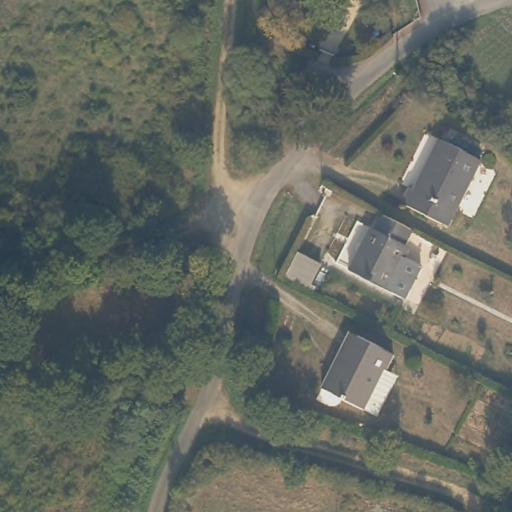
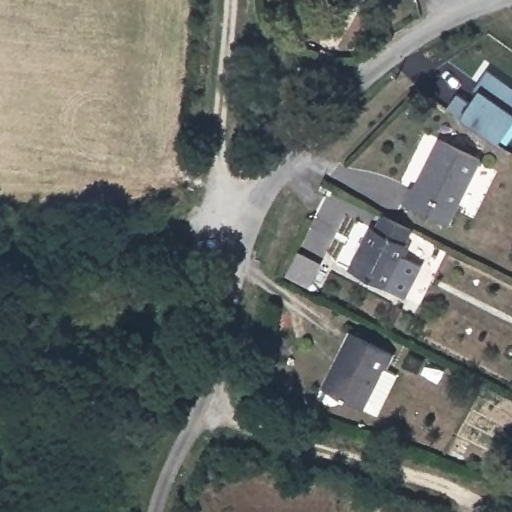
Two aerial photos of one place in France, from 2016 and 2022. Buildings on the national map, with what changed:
new [(460,115),(449,106),(458,92),(470,101),(479,89),(474,86),(488,68),(512,85),(512,121),(499,142),(460,115)]
unchanged [(480,157),(451,214),(409,194),(417,178),(421,180),(441,139),(480,157)]
unchanged [(410,221),(403,235),(407,237),(402,248),(420,257),(404,290),(386,281),(348,262),(368,219),(374,221),(381,207),(410,221)]
unchanged [(386,378),(373,404),(359,398),(359,399),(320,382),(347,325),(389,346),(382,359),(392,364),(386,378)]
unchanged [(510,473),(502,486),(481,473),(488,462),(510,473)]

